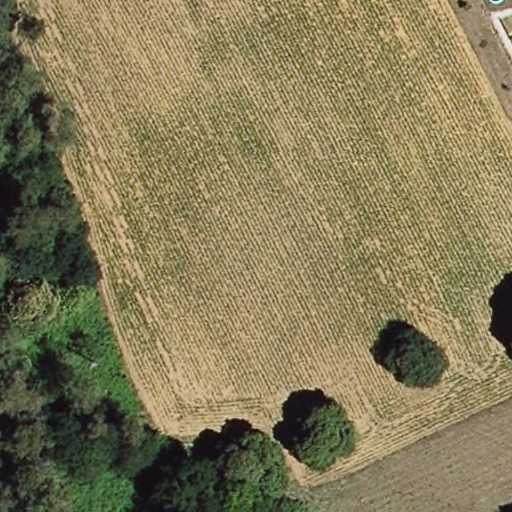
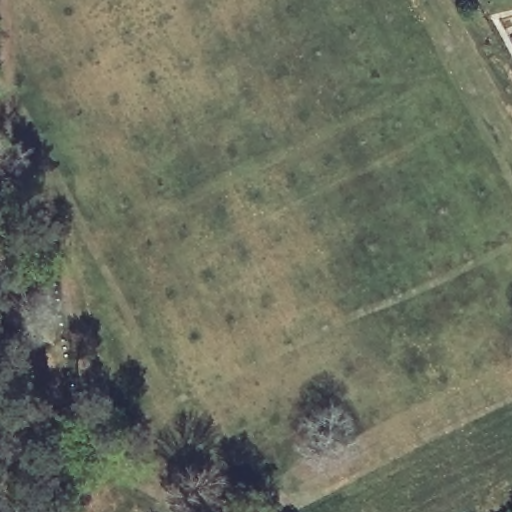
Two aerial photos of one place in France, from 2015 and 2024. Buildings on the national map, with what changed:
[]

